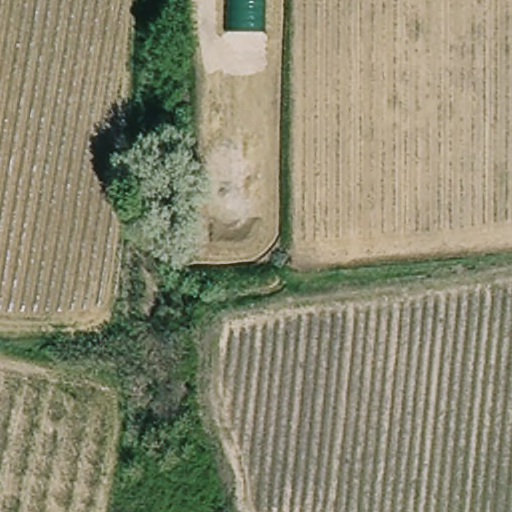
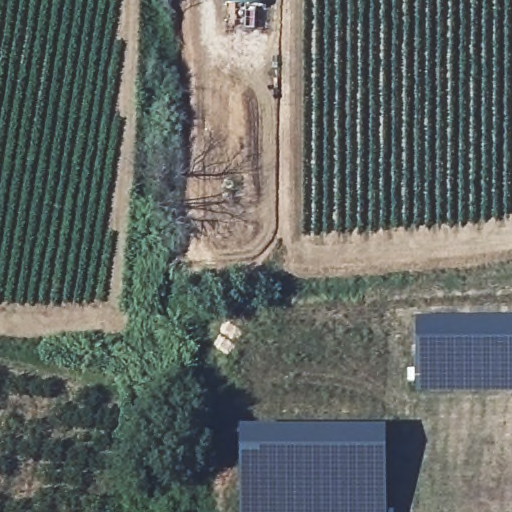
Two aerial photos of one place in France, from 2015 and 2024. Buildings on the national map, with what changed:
unchanged [(232,31),(232,0),(263,0),(262,30),(232,31)]
new [(512,316),(512,392),(417,393),(417,317),(512,316)]
new [(385,512),(241,512),(240,429),(385,429),(385,512)]

